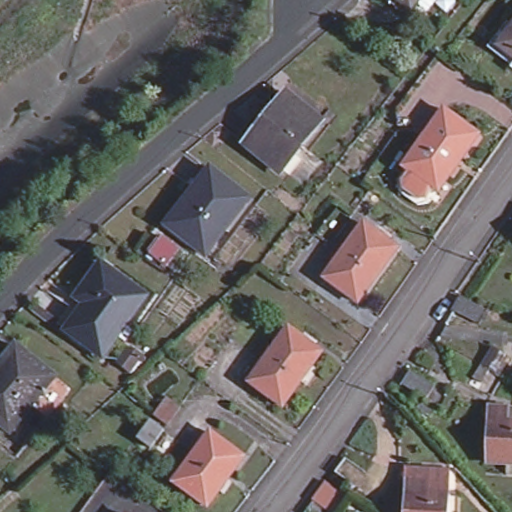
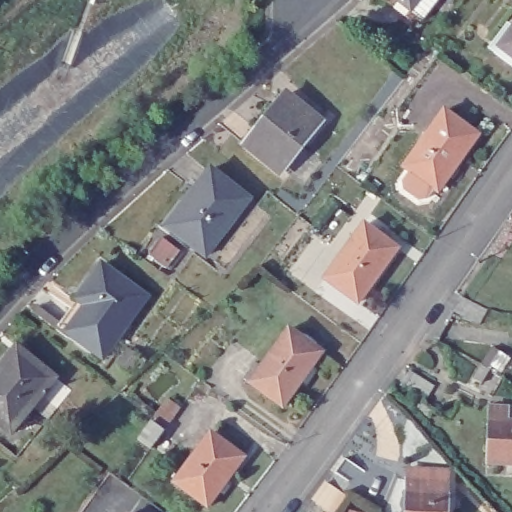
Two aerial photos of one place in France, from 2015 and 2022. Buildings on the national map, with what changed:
unchanged [(400,0),(421,0),(412,10),(400,0)]
unchanged [(497,53),(512,34),(512,64),(497,53)]
unchanged [(248,145),(287,96),(320,122),(281,172),(248,145)]
unchanged [(425,198),(407,185),(405,174),(414,162),(412,160),(452,109),(484,133),(445,184),(437,197),(425,198)]
unchanged [(168,232),(186,208),(182,204),(207,171),(245,199),(202,257),(168,232)]
unchanged [(399,248),(359,302),(325,277),(365,224),(399,248)]
unchanged [(171,277),(153,264),(165,248),(182,260),(171,277)]
unchanged [(102,270),(147,301),(104,361),(72,339),(60,330),(79,304),(102,270)]
unchanged [(483,328),(457,314),(465,299),(490,313),(483,328)]
unchanged [(323,356),(284,409),(252,386),(291,333),(323,356)]
unchanged [(22,352),(71,394),(56,411),(41,398),(10,434),(0,425),(0,368),(17,348),(22,352)]
unchanged [(495,400),(482,392),(474,387),(485,369),(495,351),(505,355),(492,374),(506,382),(495,400)]
unchanged [(427,406),(402,389),(412,376),(436,393),(427,406)]
unchanged [(155,418),(168,400),(182,410),(168,428),(155,418)]
unchanged [(489,468),(490,427),(491,414),(511,414),(510,428),(512,428),(512,468),(489,468)]
unchanged [(164,434),(150,451),(137,441),(150,424),(164,434)]
unchanged [(247,458),(211,507),(177,482),(212,434),(247,458)]
unchanged [(338,476),(347,462),(381,484),(371,499),(338,476)]
unchanged [(450,467),(449,499),(405,500),(405,466),(450,467)]
unchanged [(330,485),(350,499),(341,512),(310,512),(317,503),(330,485)]
unchanged [(405,500),(449,499),(449,512),(405,512),(405,500)]

